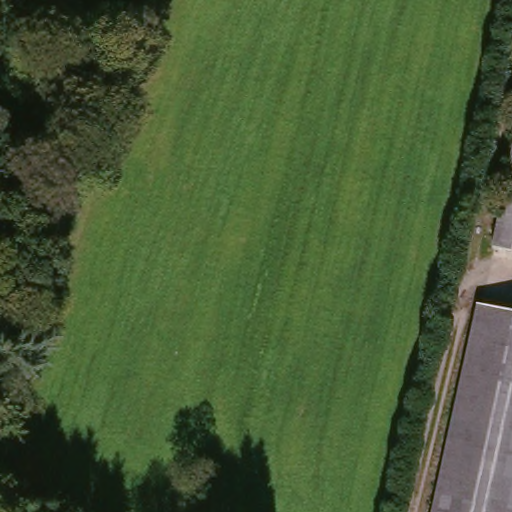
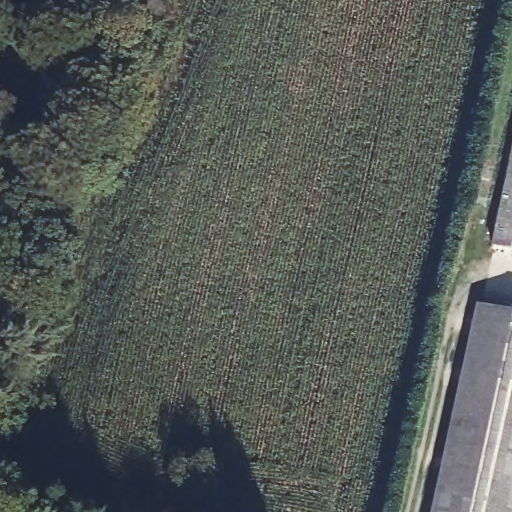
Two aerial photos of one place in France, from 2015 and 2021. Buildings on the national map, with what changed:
unchanged [(512,250),(490,246),(512,138),(512,250)]
unchanged [(512,315),(512,512),(434,512),(473,307),(512,315)]

